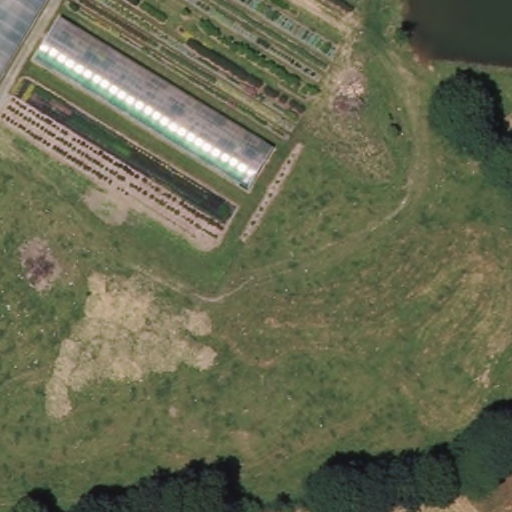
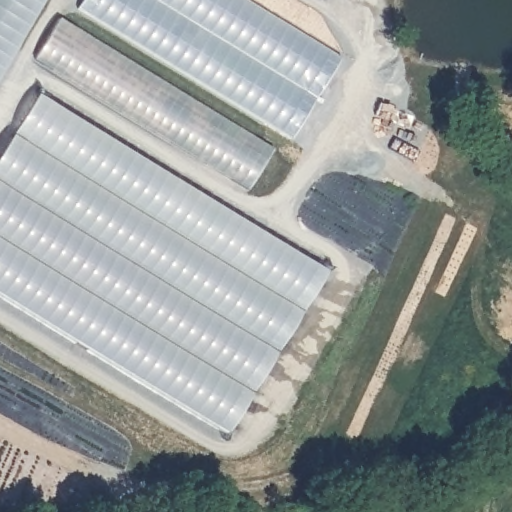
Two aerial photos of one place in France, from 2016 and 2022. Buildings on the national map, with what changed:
unchanged [(0,78),(0,0),(45,0),(0,78)]
unchanged [(246,191),(36,58),(58,19),(273,149),(246,191)]
new [(0,291),(0,157),(39,94),(324,271),(226,432),(0,291)]

